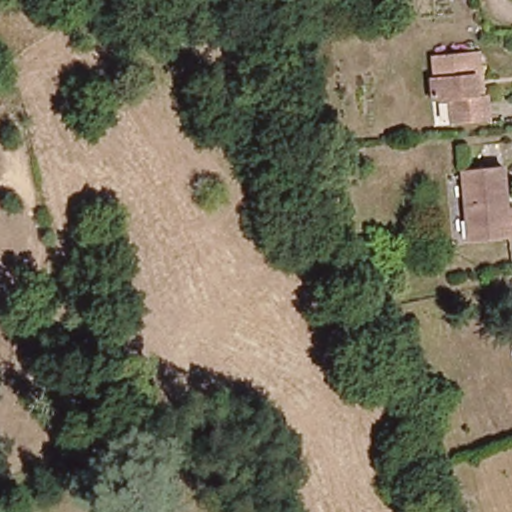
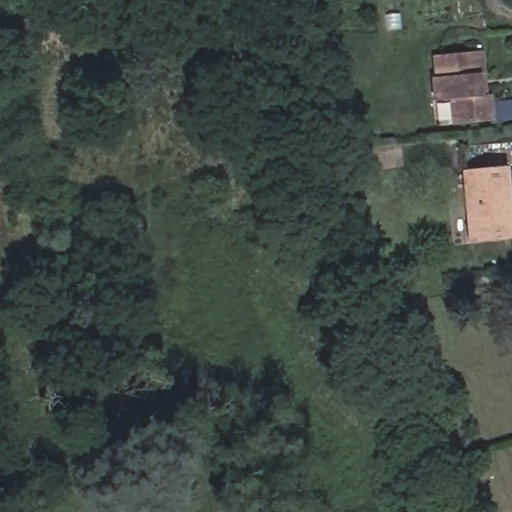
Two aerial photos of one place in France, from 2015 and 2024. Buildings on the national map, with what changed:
unchanged [(484,119),(443,122),(441,100),(424,101),(421,76),(427,75),(426,53),(463,49),(474,48),(477,93),(482,92),(484,119)]
unchanged [(457,171),(501,166),(505,205),(512,205),(512,232),(507,232),(465,236),(457,171)]

